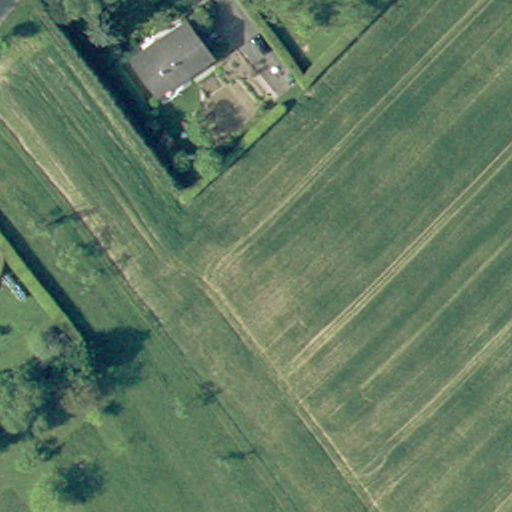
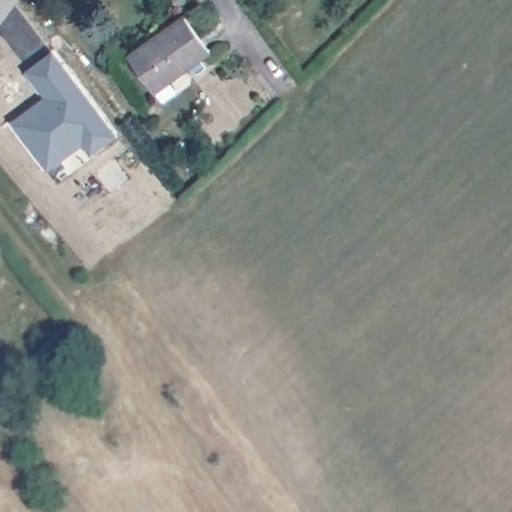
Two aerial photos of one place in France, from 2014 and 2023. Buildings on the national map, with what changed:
unchanged [(155,42),(186,19),(210,50),(153,93),(132,63),(157,44),(155,42)]
new [(40,101),(43,104),(47,100),(26,72),(50,53),(113,135),(90,154),(81,143),(59,159),(46,169),(10,124),(23,114),(40,101)]

